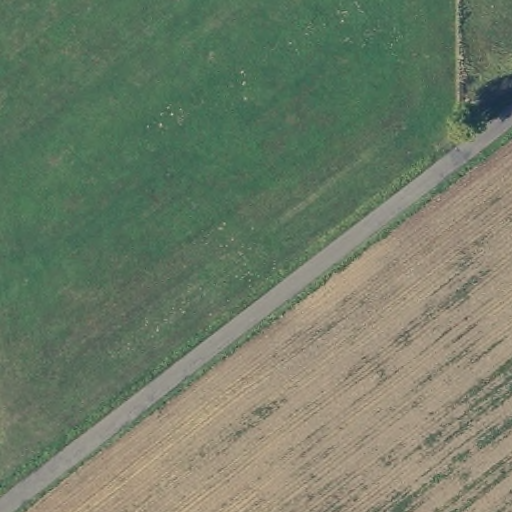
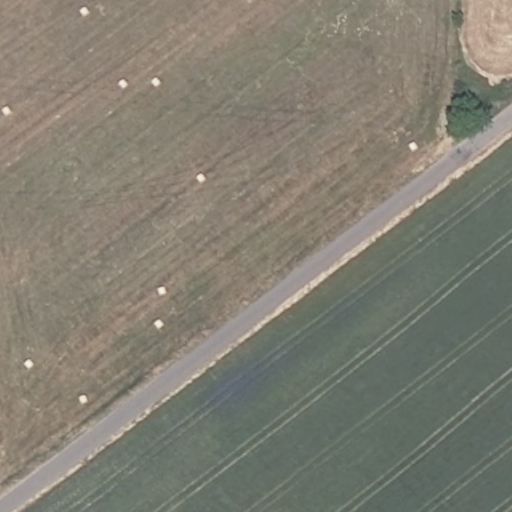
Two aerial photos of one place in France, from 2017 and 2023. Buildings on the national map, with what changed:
[]

